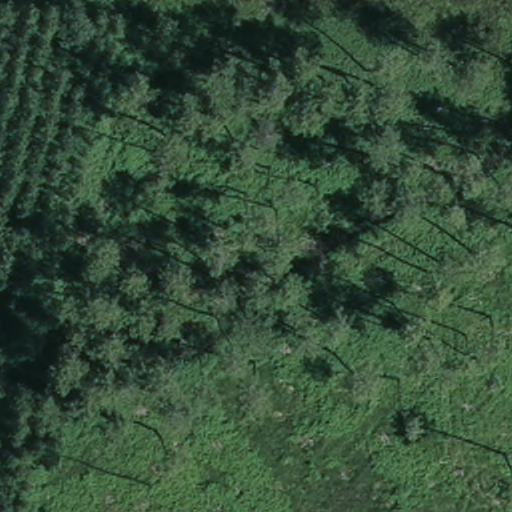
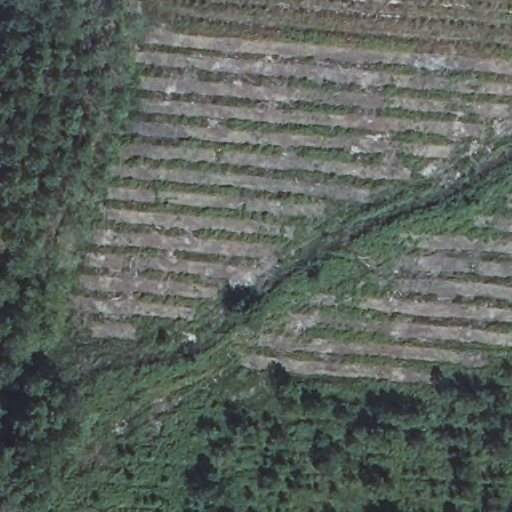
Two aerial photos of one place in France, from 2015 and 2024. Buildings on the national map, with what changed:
[]

